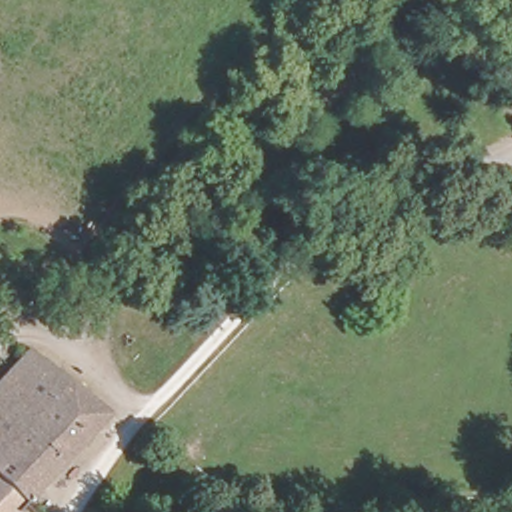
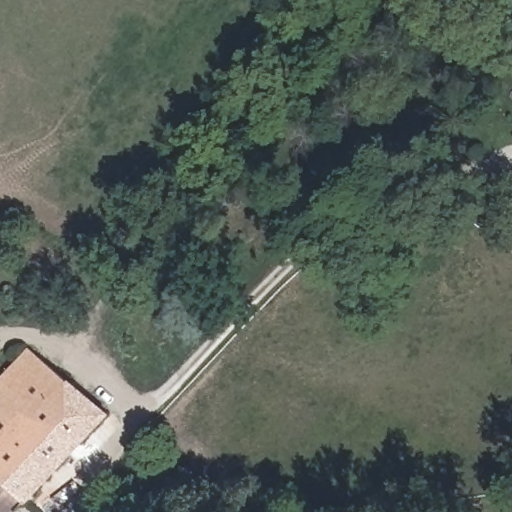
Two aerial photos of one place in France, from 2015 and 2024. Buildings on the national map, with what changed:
unchanged [(0,389),(17,371),(31,358),(44,346),(116,410),(22,512),(0,512),(0,389)]

